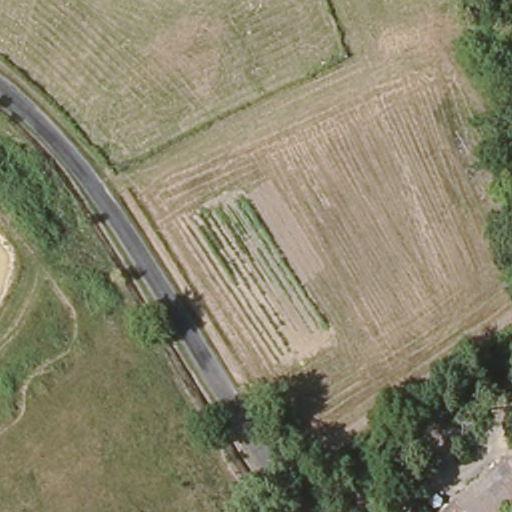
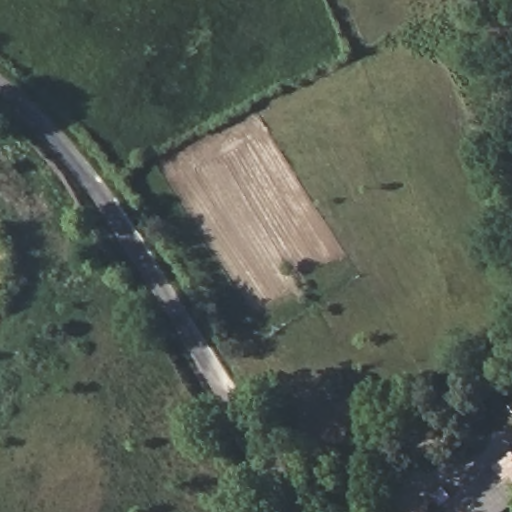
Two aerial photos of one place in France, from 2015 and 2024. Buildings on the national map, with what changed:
unchanged [(470,512),(476,506),(470,496),(464,490),(493,469),(512,497),(512,504),(502,512),(470,512)]

